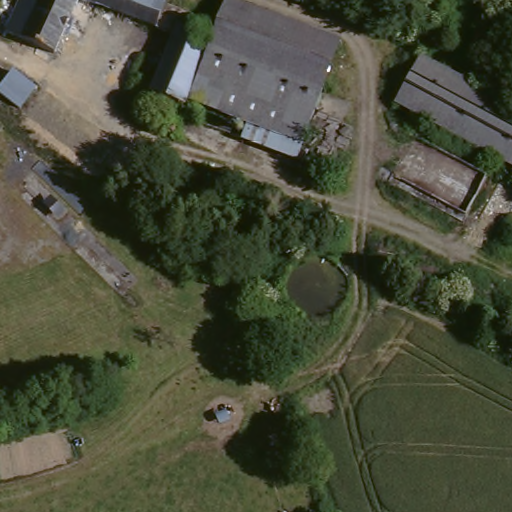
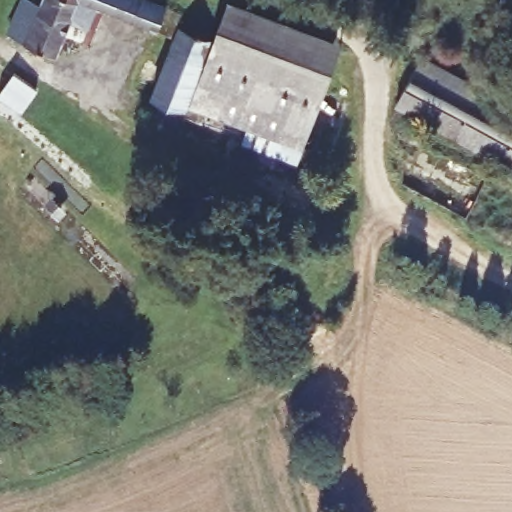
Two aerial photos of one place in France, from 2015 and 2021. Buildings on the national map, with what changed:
unchanged [(13,25),(1,17),(9,0),(77,0),(61,44),(13,25)]
unchanged [(183,23),(181,27),(152,15),(150,20),(96,0),(182,0),(189,2),(183,23)]
unchanged [(226,61),(235,34),(213,26),(218,14),(221,7),(255,10),(346,40),(329,85),(238,60),(226,61)]
unchanged [(154,103),(181,27),(183,23),(211,31),(213,26),(235,34),(226,61),(238,60),(236,66),(223,108),(219,121),(154,103)]
unchanged [(430,52),(512,100),(512,158),(404,96),(430,52)]
unchanged [(236,66),(238,60),(329,85),(306,141),(281,130),(274,146),(246,135),(252,120),(223,108),(236,66)]
unchanged [(28,107),(6,95),(23,75),(42,90),(28,107)]
demolished [(466,216),(402,185),(432,130),(494,161),(466,216)]

